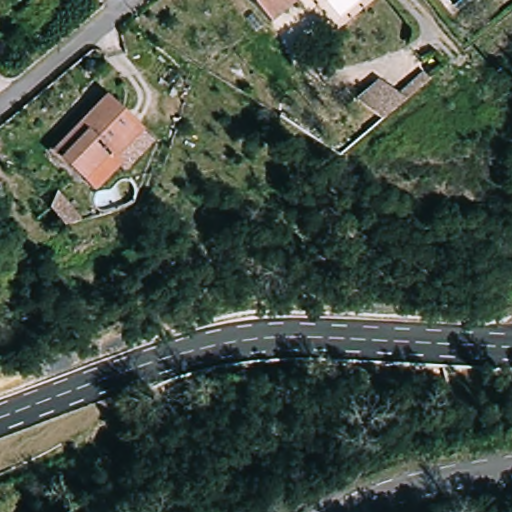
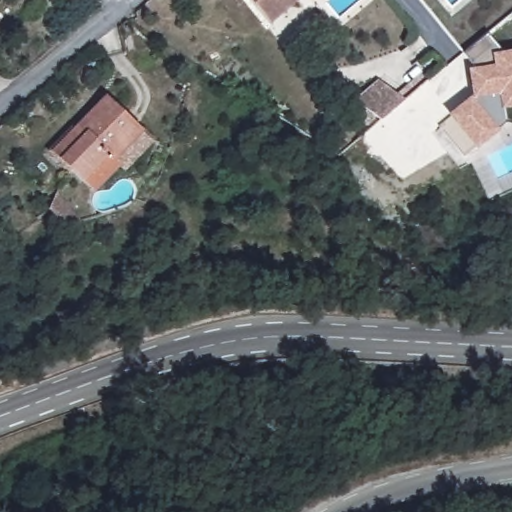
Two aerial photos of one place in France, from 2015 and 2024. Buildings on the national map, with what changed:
unchanged [(254,0),(302,0),(275,24),(254,0)]
new [(472,96),(468,70),(494,65),(492,54),(512,51),(512,109),(504,110),(507,125),(498,133),(477,150),(448,115),(472,96)]
unchanged [(380,77),(394,93),(418,71),(427,80),(380,123),(357,99),(380,77)]
unchanged [(81,182),(52,153),(103,95),(152,139),(127,169),(118,162),(91,191),(81,182)]
unchanged [(46,206),(57,193),(77,217),(60,225),(46,206)]

